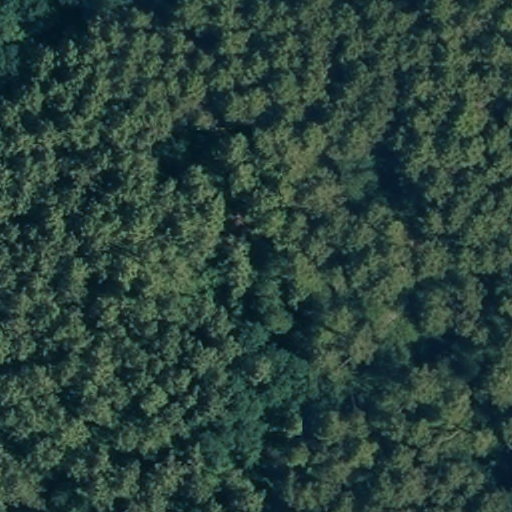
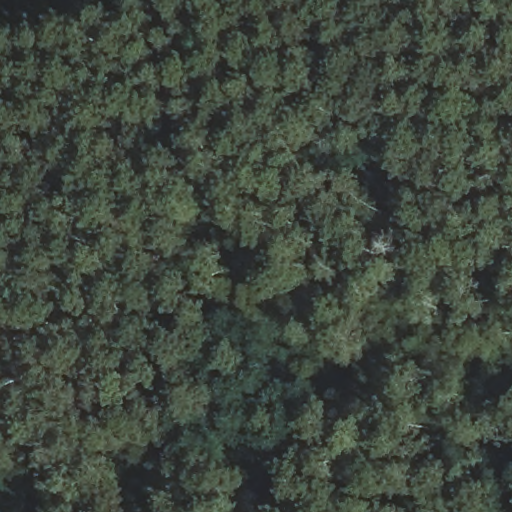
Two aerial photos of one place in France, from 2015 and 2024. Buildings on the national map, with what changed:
[]

